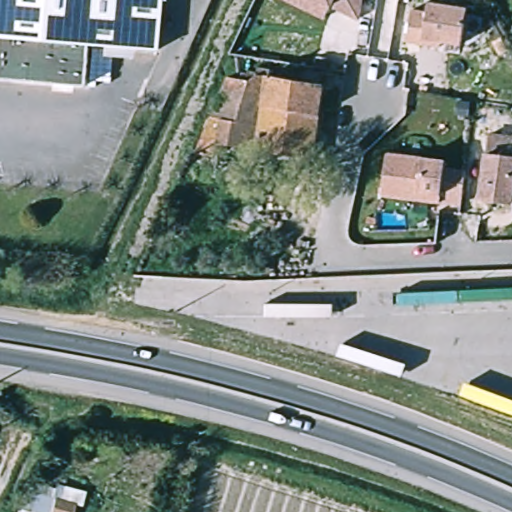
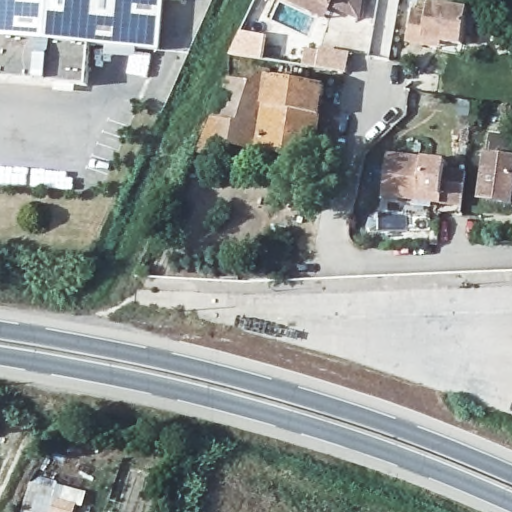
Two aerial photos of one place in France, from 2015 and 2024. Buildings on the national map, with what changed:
unchanged [(89,46),(82,88),(0,78),(0,0),(157,0),(152,52),(89,46)]
unchanged [(359,21),(330,7),(323,18),(286,0),(362,0),(359,21)]
unchanged [(462,44),(442,41),(441,47),(407,40),(412,6),(428,6),(428,0),(432,0),(468,6),(462,44)]
unchanged [(313,155),(248,149),(243,158),(193,152),(225,76),(247,70),(257,71),(325,83),(313,155)]
unchanged [(479,198),(488,128),(512,132),(512,201),(479,198)]
unchanged [(462,204),(380,194),(385,150),(447,156),(445,166),(465,169),(462,204)]
unchanged [(85,497),(80,512),(22,512),(28,484),(85,497)]

